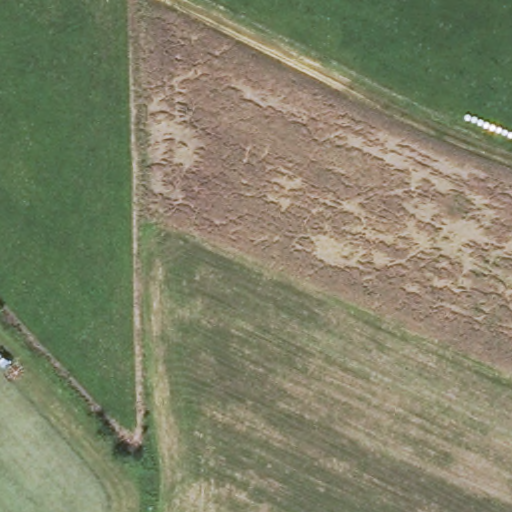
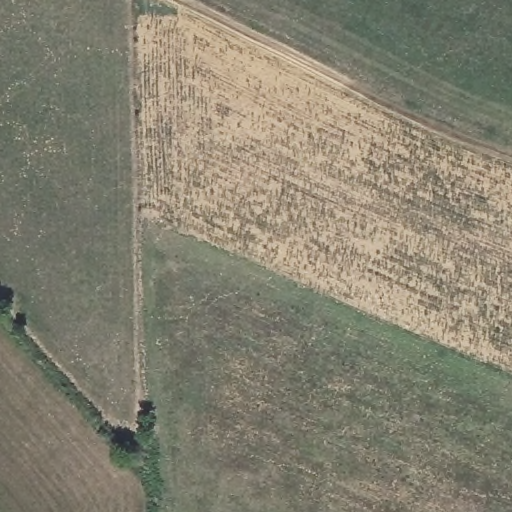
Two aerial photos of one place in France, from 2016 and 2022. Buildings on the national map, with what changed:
[]

